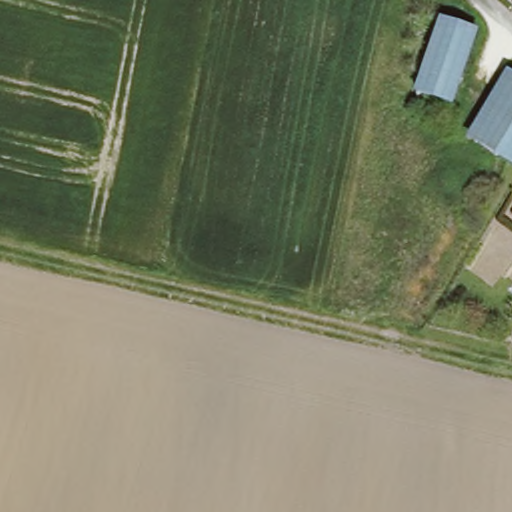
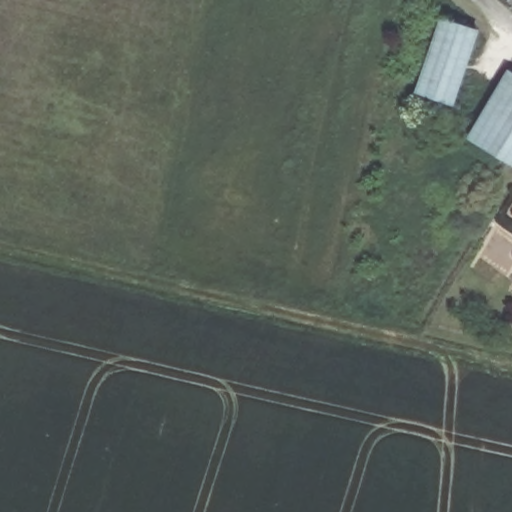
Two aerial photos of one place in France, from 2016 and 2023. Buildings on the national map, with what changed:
unchanged [(458,104),(423,92),(448,21),(483,32),(458,104)]
unchanged [(512,155),(483,138),(474,132),(512,72),(512,155)]

